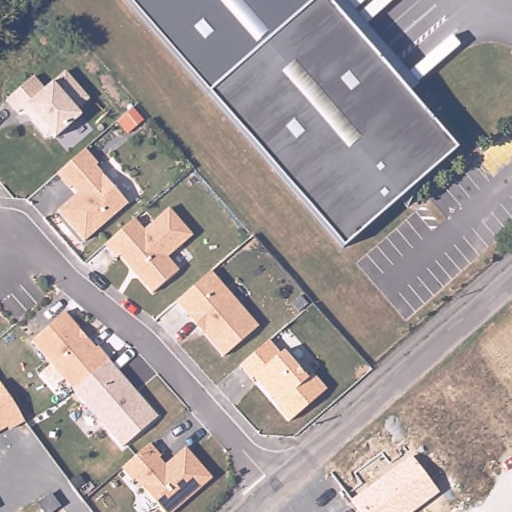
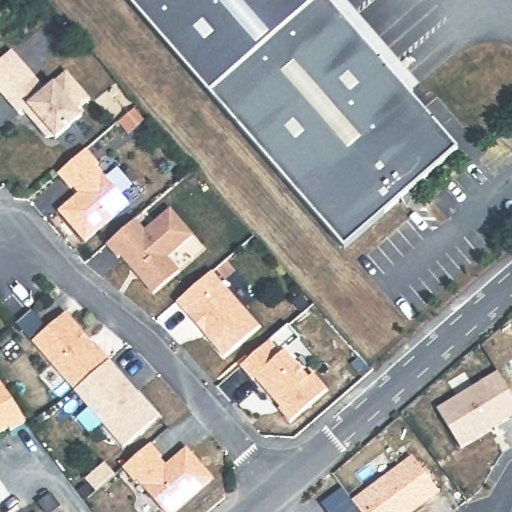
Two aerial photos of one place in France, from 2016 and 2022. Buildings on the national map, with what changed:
unchanged [(313,0),(208,92),(128,0),(313,0)]
unchanged [(229,74),(301,11),(313,0),(329,0),(457,147),(430,172),(357,236),(344,247),(208,92),(229,74)]
unchanged [(345,0),(419,86),(410,94),(329,0),(345,0)]
unchanged [(53,82),(68,70),(91,97),(77,110),(83,117),(56,140),(50,132),(45,137),(22,114),(19,116),(6,101),(33,77),(45,90),(53,82)]
unchanged [(77,194),(72,188),(69,190),(56,175),(85,149),(99,165),(96,167),(130,204),(85,242),(56,212),(77,194)]
unchanged [(117,260),(104,246),(135,220),(144,230),(170,208),(194,236),(168,257),(180,271),(152,293),(120,257),(117,260)]
unchanged [(175,303),(210,272),(259,327),(224,357),(175,303)]
unchanged [(31,342),(65,312),(109,360),(75,391),(31,342)]
unchanged [(289,422),(278,411),(281,408),(256,380),(253,382),(239,367),(270,342),(284,352),(308,377),(313,373),(328,391),(289,422)]
unchanged [(75,391),(109,360),(159,417),(122,447),(73,393),(75,391)]
new [(497,370),(512,397),(512,416),(457,448),(433,407),(497,370)]
unchanged [(8,428),(0,433),(0,382),(26,422),(10,432),(8,428)]
unchanged [(213,479),(174,512),(163,512),(136,481),(133,484),(121,470),(149,446),(165,465),(186,447),(213,479)]
unchanged [(415,512),(361,512),(351,500),(413,455),(439,493),(415,512)]

